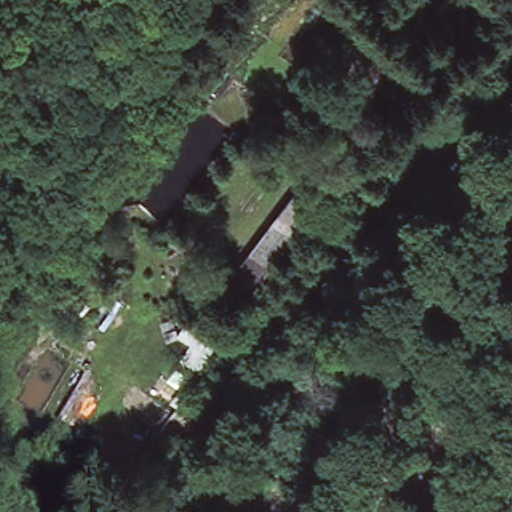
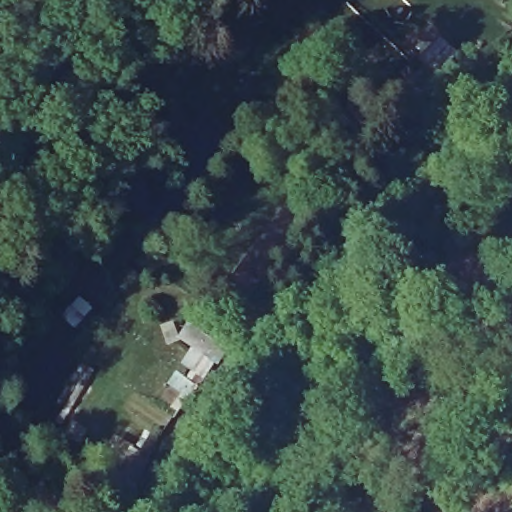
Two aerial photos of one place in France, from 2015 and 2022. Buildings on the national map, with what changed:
unchanged [(415,70),(423,60),(428,64),(431,60),(437,65),(442,59),(452,69),(434,88),(415,70)]
unchanged [(337,158),(344,149),(357,136),(380,112),(390,121),(366,145),(353,159),(345,166),(337,158)]
unchanged [(232,289),(265,244),(297,202),(310,213),(278,255),(245,299),(232,289)]
unchanged [(227,352),(218,364),(206,357),(195,375),(177,366),(190,348),(177,340),(187,324),(227,352)]

